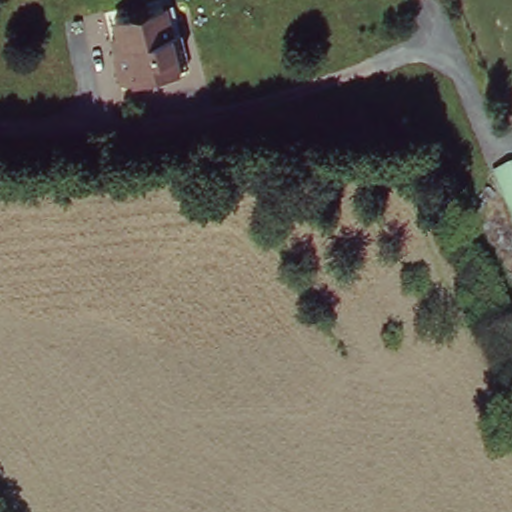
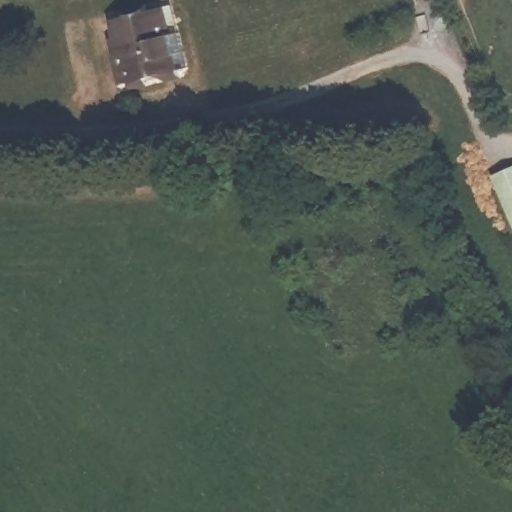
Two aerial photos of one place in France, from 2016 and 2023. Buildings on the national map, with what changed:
unchanged [(131,9),(130,1),(138,0),(146,0),(148,6),(163,2),(169,32),(181,29),(188,66),(178,69),(181,77),(165,80),(160,72),(152,73),(149,85),(132,88),(130,77),(120,78),(114,50),(117,49),(114,31),(121,30),(118,11),(131,9)]
unchanged [(512,223),(490,170),(512,159),(512,223)]

